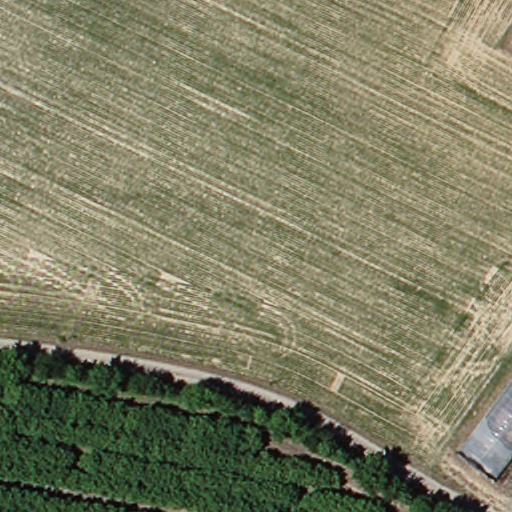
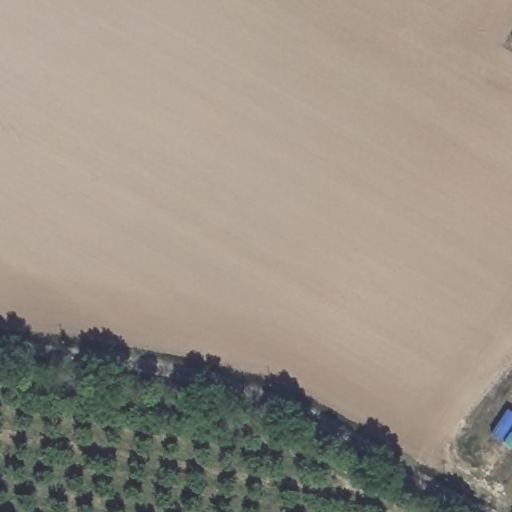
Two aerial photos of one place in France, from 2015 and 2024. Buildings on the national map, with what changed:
unchanged [(509,44),(512,38),(512,45),(509,44)]
unchanged [(512,384),(512,455),(495,477),(461,450),(512,384)]

